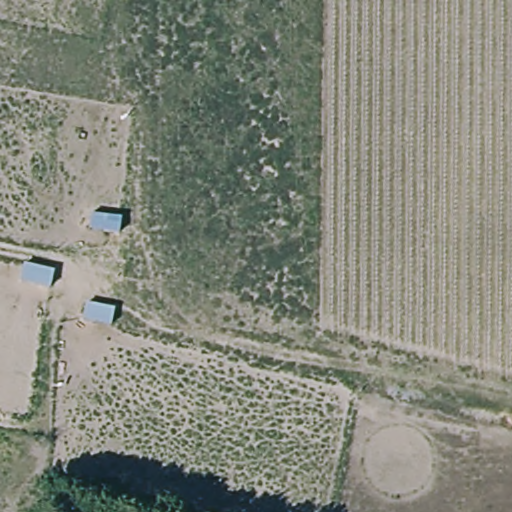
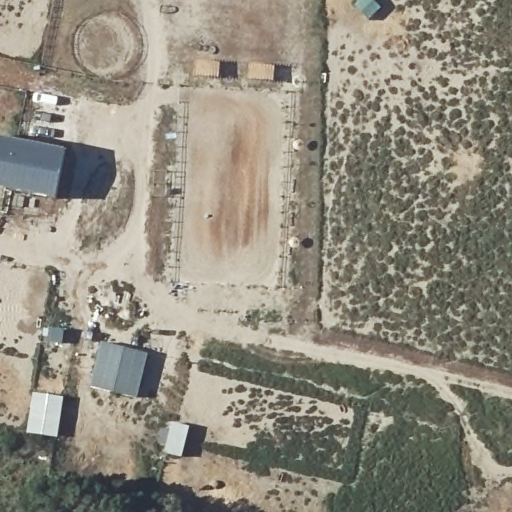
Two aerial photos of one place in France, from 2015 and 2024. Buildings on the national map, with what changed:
new [(63,151),(55,199),(0,189),(0,138),(63,151)]
new [(148,354),(138,398),(91,387),(101,345),(148,354)]
new [(58,439),(28,434),(35,394),(65,398),(58,439)]
new [(184,457),(162,453),(165,432),(170,433),(171,425),(188,427),(184,457)]

